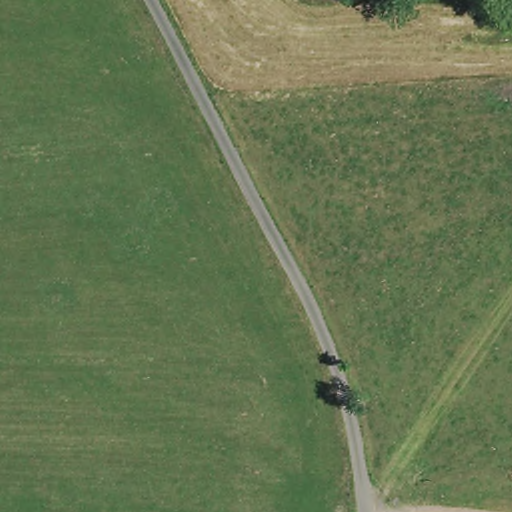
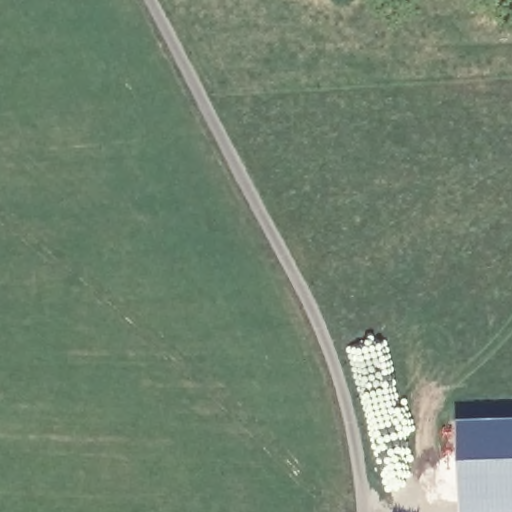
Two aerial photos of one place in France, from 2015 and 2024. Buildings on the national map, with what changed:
new [(512,512),(460,512),(455,420),(512,417),(512,512)]

